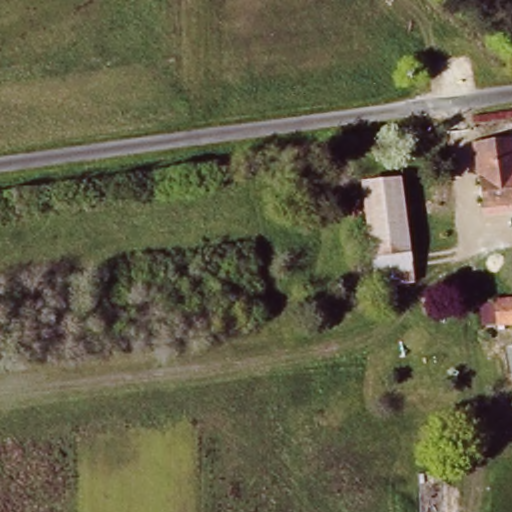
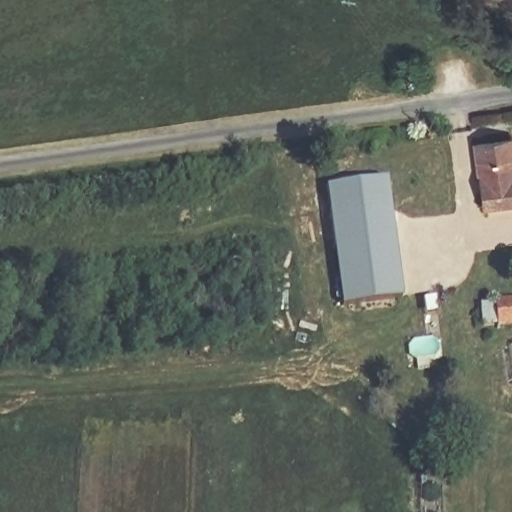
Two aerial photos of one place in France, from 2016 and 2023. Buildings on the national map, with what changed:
unchanged [(468,141),(505,136),(510,161),(512,161),(512,211),(478,213),(468,141)]
new [(342,305),(325,185),(386,177),(403,296),(342,305)]
demolished [(378,277),(373,251),(410,246),(414,270),(394,274),(378,277)]
unchanged [(480,305),(512,299),(512,322),(484,327),(480,305)]

